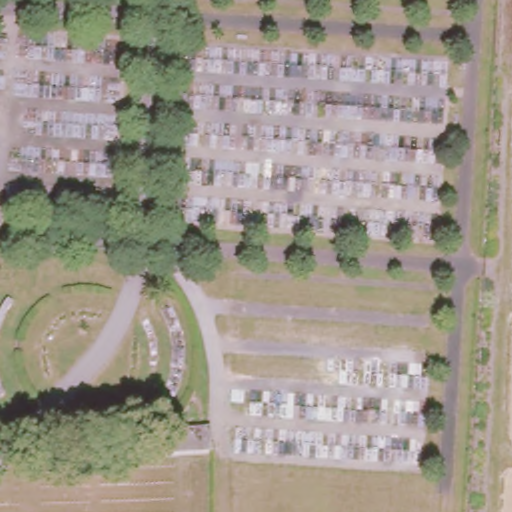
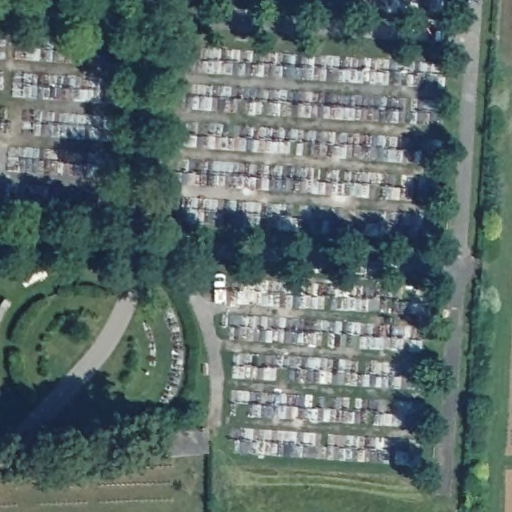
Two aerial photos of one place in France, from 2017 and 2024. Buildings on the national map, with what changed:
unchanged [(195,438),(196,447),(170,450),(169,439),(168,433),(194,431),(195,438)]

